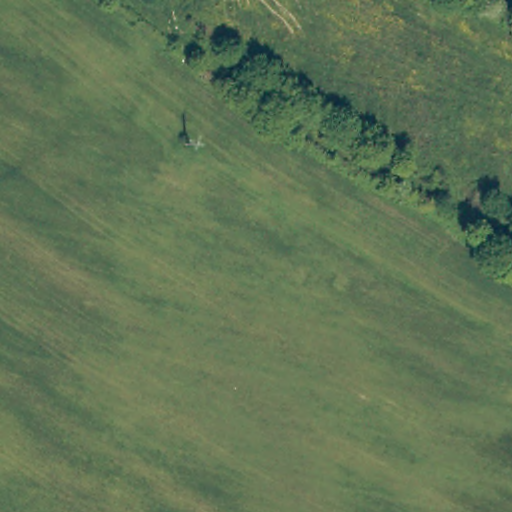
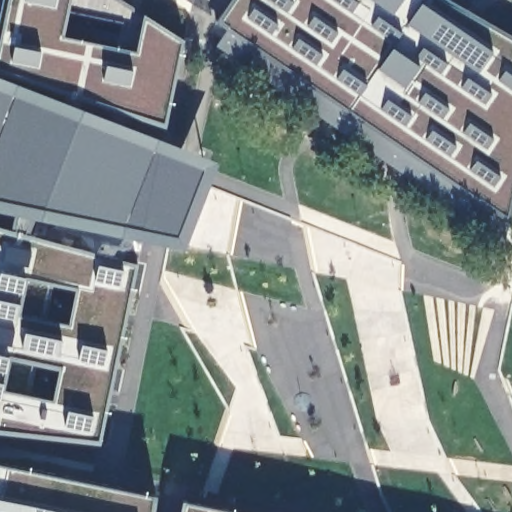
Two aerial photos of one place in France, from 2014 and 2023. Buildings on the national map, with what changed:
new [(10,231),(15,214),(0,211),(0,4),(1,0),(118,0),(183,42),(166,128),(81,100),(76,108),(220,165),(185,249),(37,219),(27,238),(136,268),(100,443),(0,431),(0,228),(10,231)]
new [(188,0),(195,0),(194,4),(188,0)]
new [(501,243),(216,45),(226,28),(217,20),(231,0),(445,0),(512,39),(512,212),(510,224),(501,243)]
new [(157,498),(154,512),(0,512),(0,464),(157,498)]
new [(186,504),(222,512),(184,512),(186,504)]

